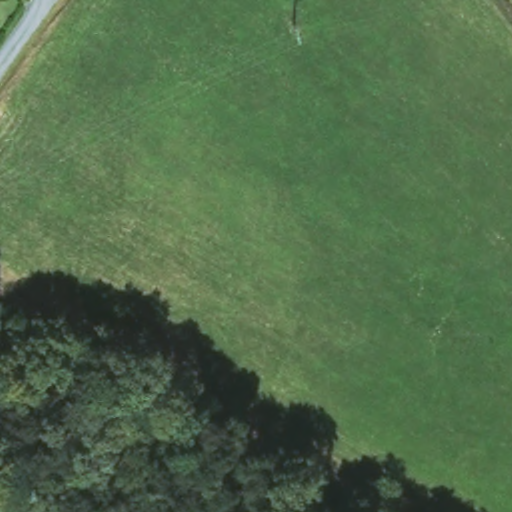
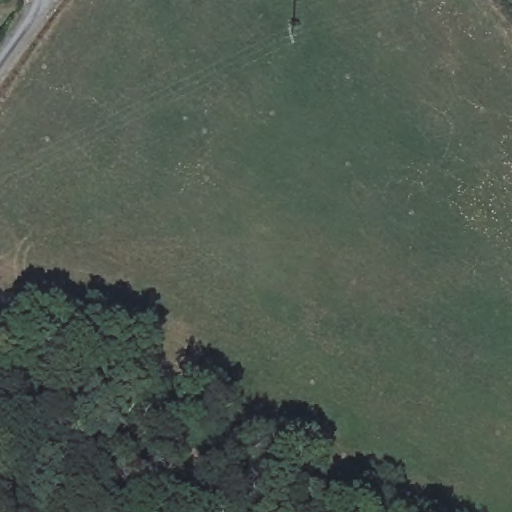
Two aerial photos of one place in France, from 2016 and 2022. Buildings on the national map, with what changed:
[]

